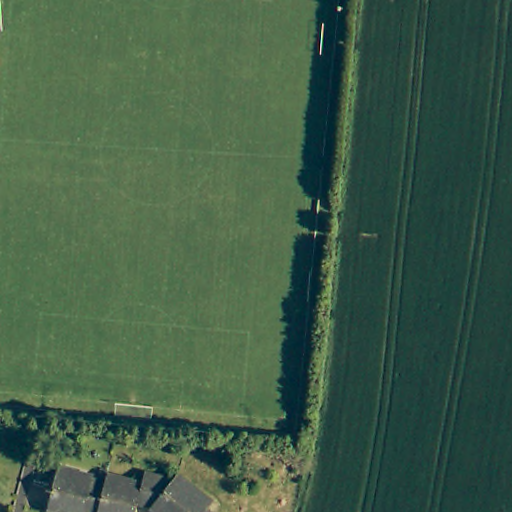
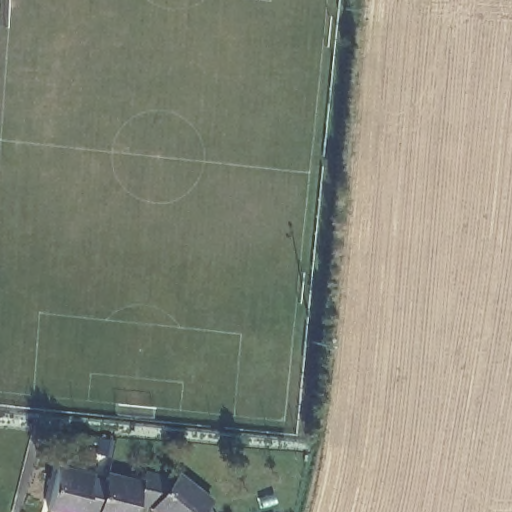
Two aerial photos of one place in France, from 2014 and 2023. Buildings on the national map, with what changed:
unchanged [(90,512),(87,511),(87,512),(52,512),(50,511),(59,468),(96,475),(95,482),(106,483),(100,512),(90,512)]
unchanged [(175,480),(180,474),(212,504),(203,511),(203,512),(158,512),(154,507),(175,480)]
unchanged [(107,477),(141,482),(142,476),(175,480),(154,507),(151,506),(139,504),(137,512),(100,512),(106,483),(107,477)]

